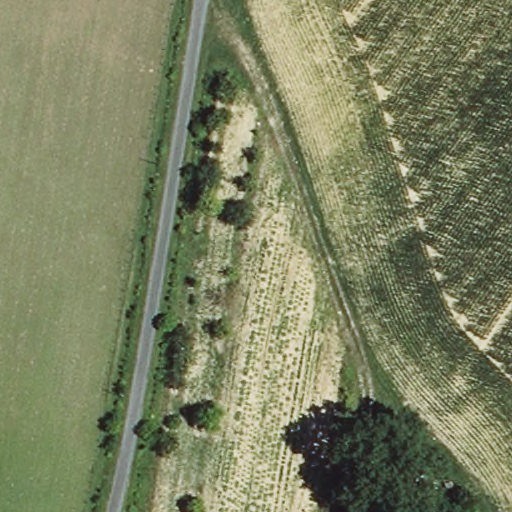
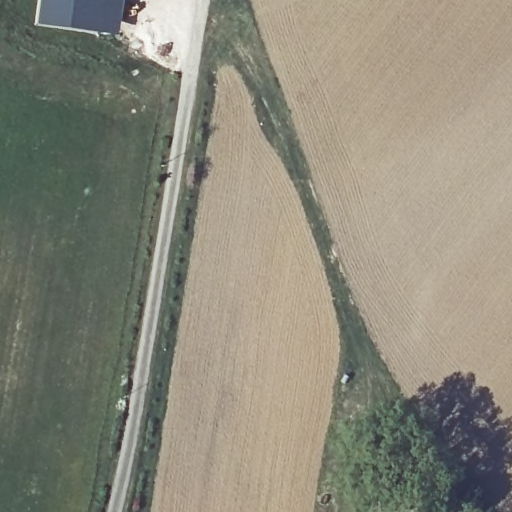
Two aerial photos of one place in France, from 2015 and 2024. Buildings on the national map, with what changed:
new [(39,22),(42,0),(122,0),(118,31),(39,22)]
unchanged [(468,512),(420,512),(418,500),(463,491),(468,512)]

